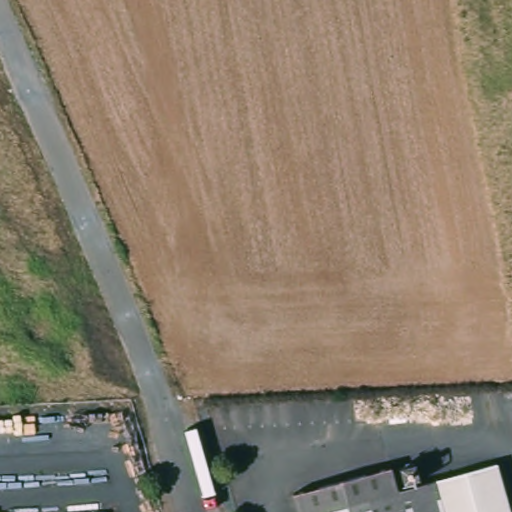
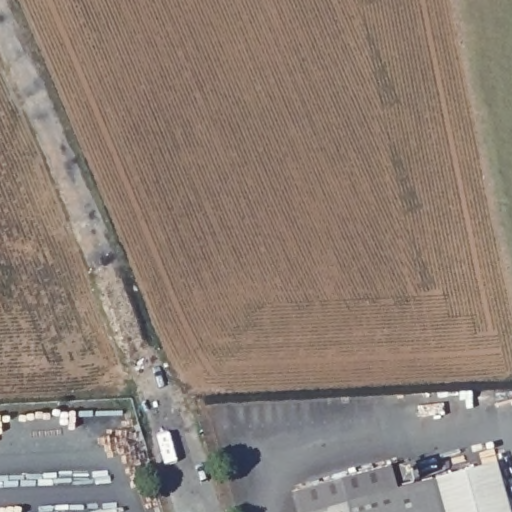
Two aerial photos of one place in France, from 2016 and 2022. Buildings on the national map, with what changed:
unchanged [(436,479),(496,464),(509,512),(444,512),(438,487),(436,479)]
unchanged [(299,500),(396,474),(401,495),(402,497),(406,509),(406,512),(302,512),(299,500)]
unchanged [(444,512),(406,512),(406,509),(402,497),(438,487),(444,512)]

